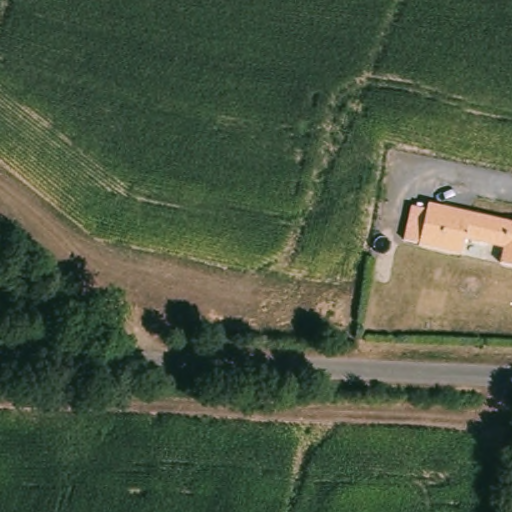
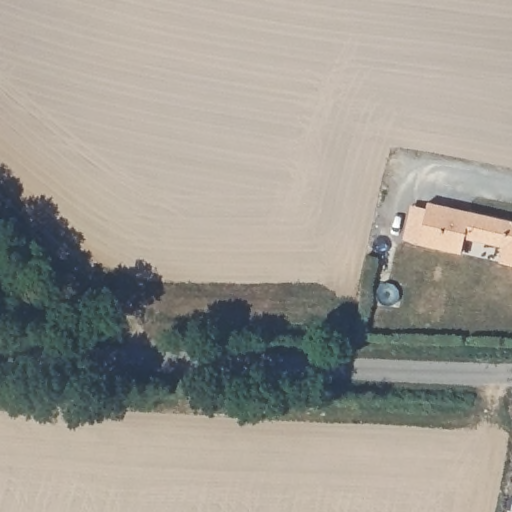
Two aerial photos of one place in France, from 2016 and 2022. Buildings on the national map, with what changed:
unchanged [(505,248),(467,239),(463,254),(421,244),(431,203),(512,223),(512,266),(501,264),(505,248)]

